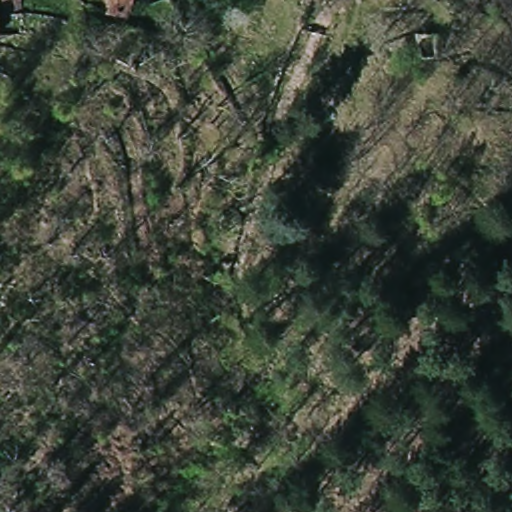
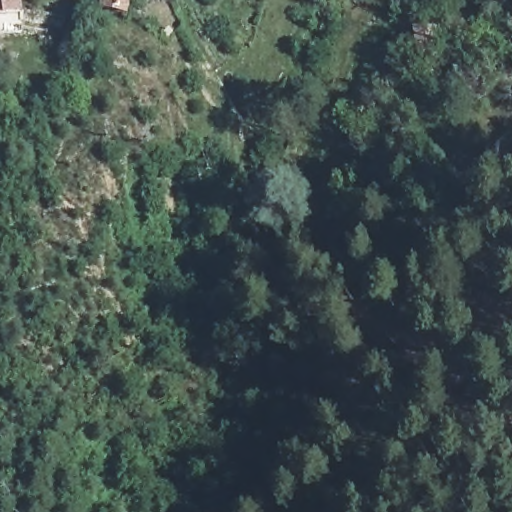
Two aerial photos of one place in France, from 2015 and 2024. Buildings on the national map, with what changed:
unchanged [(118,30),(113,30),(117,0),(137,0),(133,33),(118,30)]

